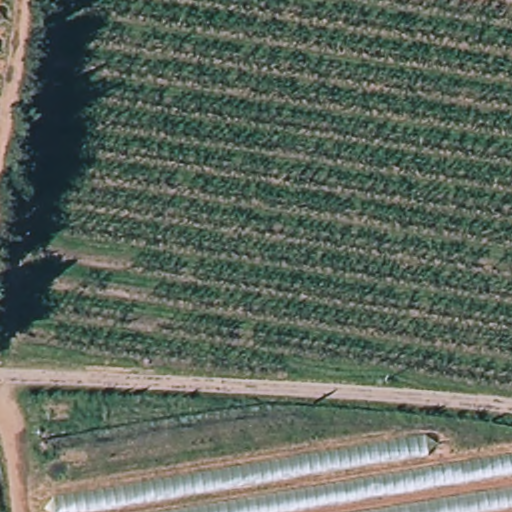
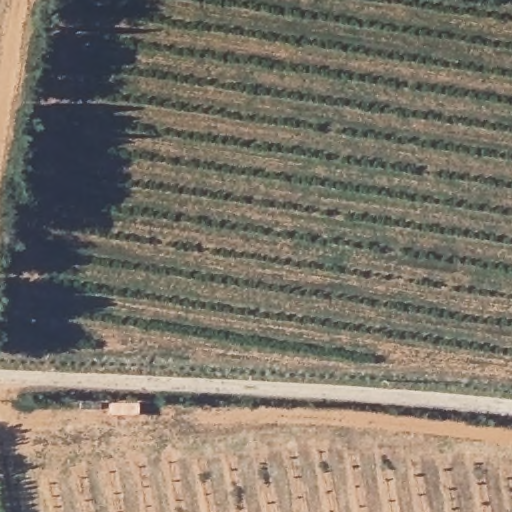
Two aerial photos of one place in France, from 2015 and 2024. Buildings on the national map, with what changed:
demolished [(0,0),(5,0),(0,29),(0,0)]
demolished [(322,423),(330,463),(449,440),(454,465),(512,455),(512,512),(51,512),(43,466),(322,423)]

